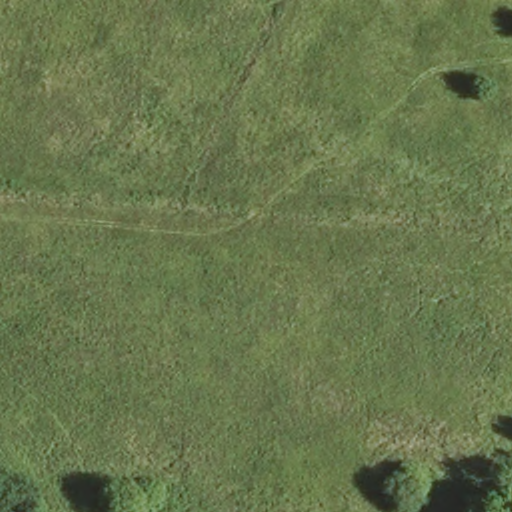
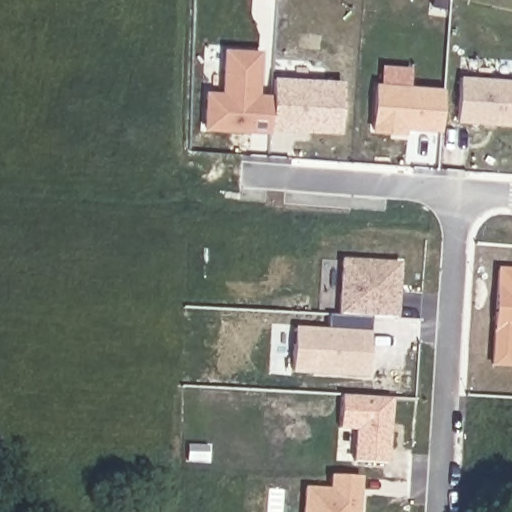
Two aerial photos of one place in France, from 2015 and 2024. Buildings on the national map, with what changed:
new [(254,127),(204,124),(206,89),(223,90),(225,46),(258,49),(254,127)]
new [(512,122),(456,118),(459,74),(512,78),(512,122)]
new [(341,79),(338,129),(269,125),(272,75),(341,79)]
new [(443,89),(439,129),(402,124),(402,130),(372,127),(377,83),(443,89)]
new [(269,128),(254,127),(256,92),(271,93),(269,128)]
new [(340,259),(397,263),(394,317),(337,314),(340,259)]
new [(512,338),(510,364),(492,363),(497,269),(512,269),(512,338)]
new [(368,332),(365,374),(289,370),(292,327),(368,332)]
new [(389,397),(385,462),(353,460),(354,427),(337,425),(339,394),(389,397)]
new [(359,475),(357,512),(303,512),(304,487),(330,488),(331,473),(359,475)]

